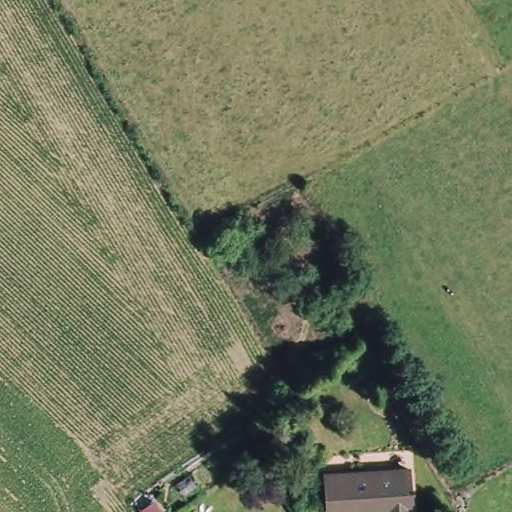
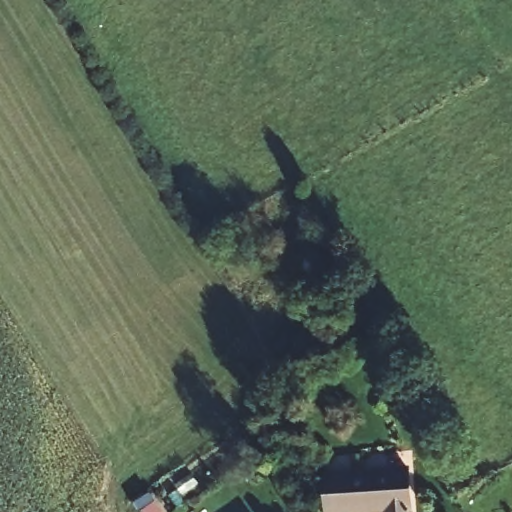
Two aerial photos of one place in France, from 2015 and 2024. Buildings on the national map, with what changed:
unchanged [(410,508),(377,510),(377,502),(330,504),(330,463),(409,463),(410,508)]

